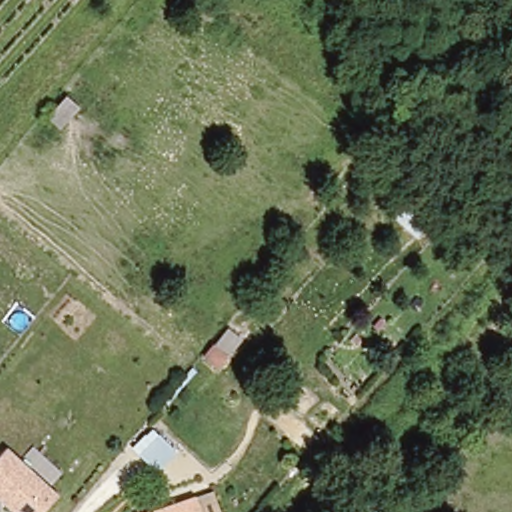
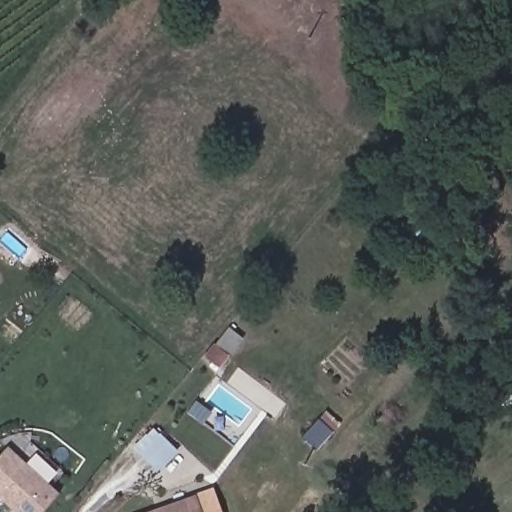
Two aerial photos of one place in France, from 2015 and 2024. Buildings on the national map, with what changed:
unchanged [(220,368),(202,356),(228,325),(246,339),(220,368)]
unchanged [(157,473),(132,449),(152,427),(177,452),(157,473)]
unchanged [(43,512),(16,512),(0,497),(0,459),(10,447),(60,493),(43,512)]
unchanged [(215,491),(222,512),(159,512),(195,499),(215,491)]

